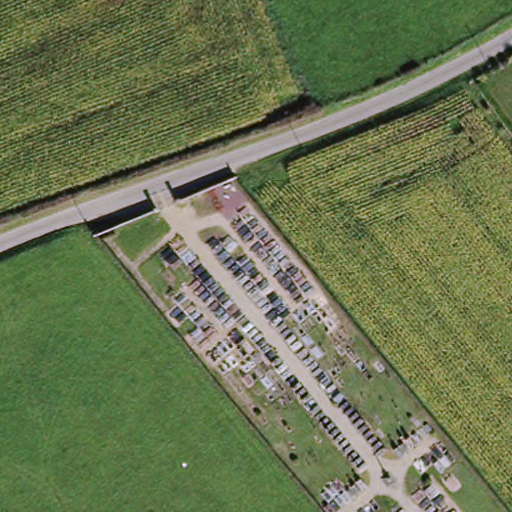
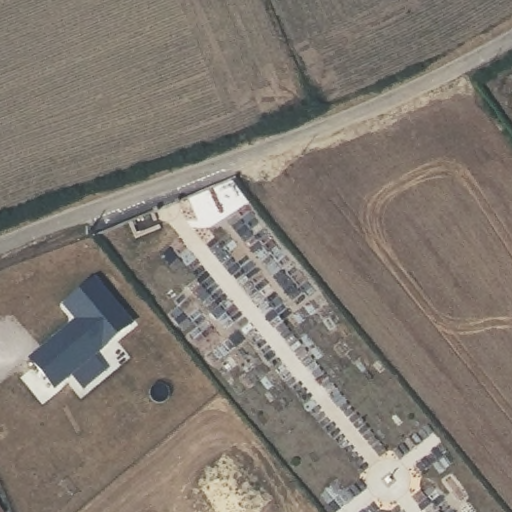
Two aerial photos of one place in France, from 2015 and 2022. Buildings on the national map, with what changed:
new [(133,323),(55,388),(30,357),(75,320),(65,305),(95,277),(133,323)]

